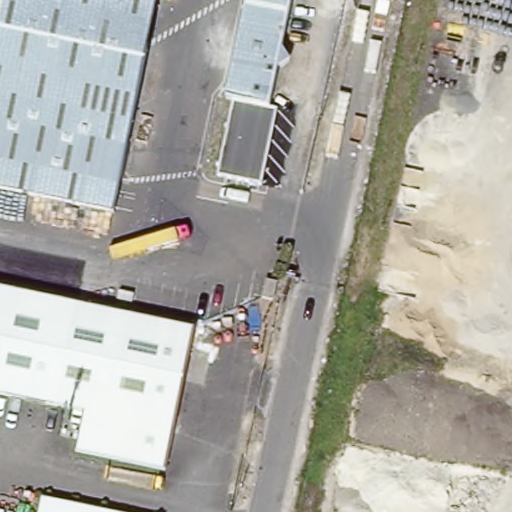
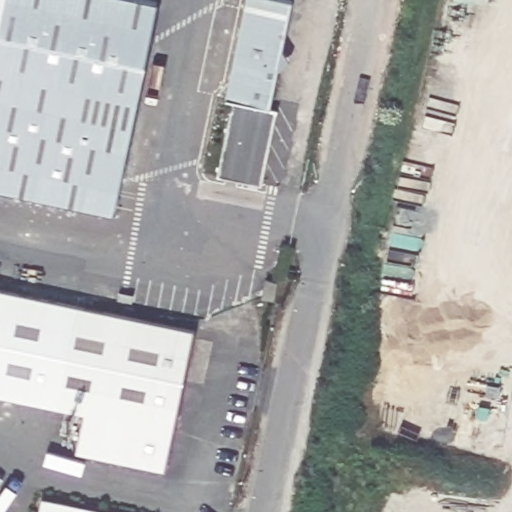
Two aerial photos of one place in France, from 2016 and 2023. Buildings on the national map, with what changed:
unchanged [(115,209),(0,187),(0,0),(156,0),(115,209)]
unchanged [(226,99),(246,0),(293,0),(271,109),(277,110),(262,185),(218,176),(233,100),(226,99)]
unchanged [(274,273),(271,291),(259,290),(263,271),(274,273)]
unchanged [(76,450),(84,410),(0,393),(0,289),(193,328),(164,467),(76,450)]
unchanged [(71,504),(108,512),(38,512),(41,497),(71,504)]

